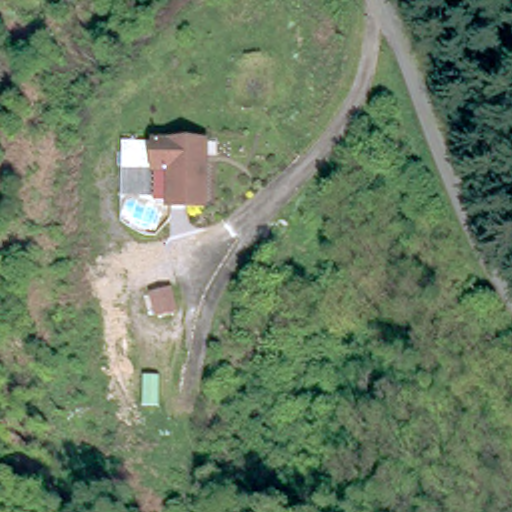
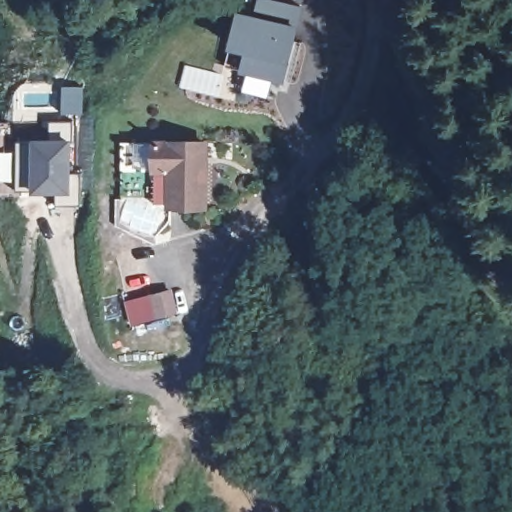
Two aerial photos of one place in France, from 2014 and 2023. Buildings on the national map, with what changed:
new [(229,47),(239,8),(255,12),(258,0),(282,0),(304,6),(299,26),(289,64),(284,83),(239,70),(246,51),(229,47)]
new [(16,189),(17,139),(49,140),(49,120),(73,120),(72,141),(69,141),(68,172),(81,173),(80,205),(55,205),(55,190),(48,190),(35,190),(16,189)]
unchanged [(170,202),(169,200),(154,198),(155,138),(204,140),(202,202),(170,202)]
new [(168,290),(174,312),(157,317),(132,323),(126,301),(151,295),(168,290)]

